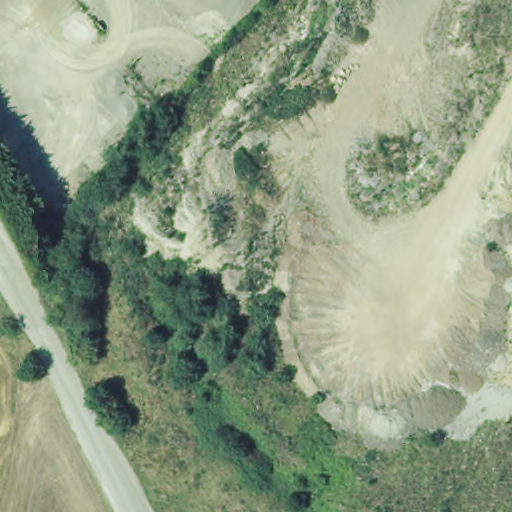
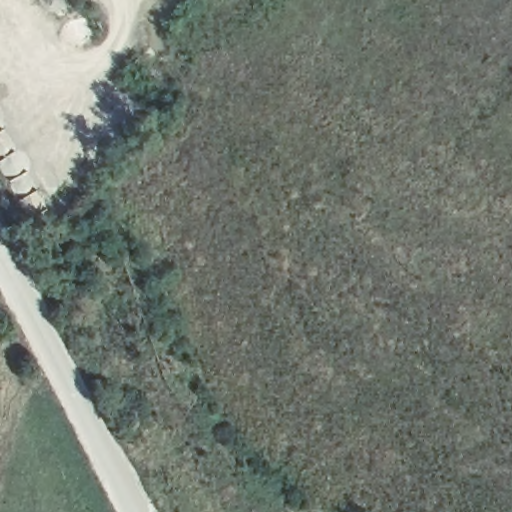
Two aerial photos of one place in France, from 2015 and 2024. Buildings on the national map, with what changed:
[]

